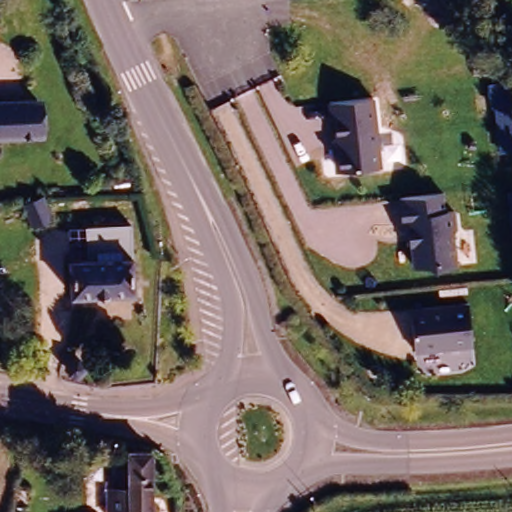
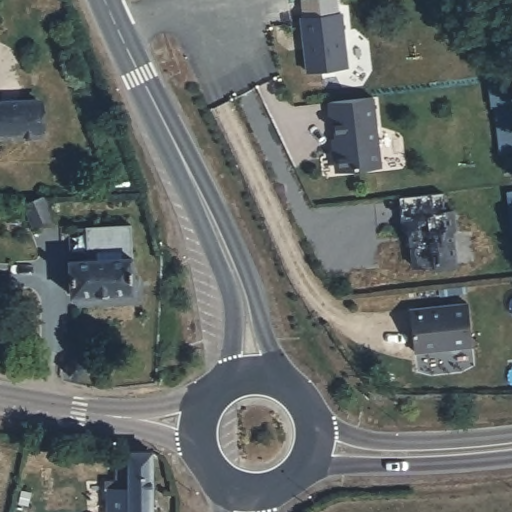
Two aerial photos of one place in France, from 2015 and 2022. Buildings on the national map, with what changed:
new [(348,71),(308,77),(305,54),(308,54),(306,43),(305,44),(301,18),(340,13),(348,71)]
unchanged [(382,167),(340,171),(332,102),(375,96),(382,167)]
unchanged [(40,103),(40,138),(0,138),(0,103),(40,103)]
unchanged [(45,182),(55,205),(36,213),(26,190),(45,182)]
unchanged [(447,210),(455,209),(458,242),(455,242),(458,265),(413,270),(410,228),(403,229),(400,198),(445,193),(447,210)]
unchanged [(133,261),(133,291),(76,289),(76,259),(133,261)]
unchanged [(475,345),(417,350),(413,307),(470,301),(475,345)]
unchanged [(156,464),(156,512),(107,512),(107,493),(117,494),(117,477),(134,477),(135,462),(136,461),(156,464)]

